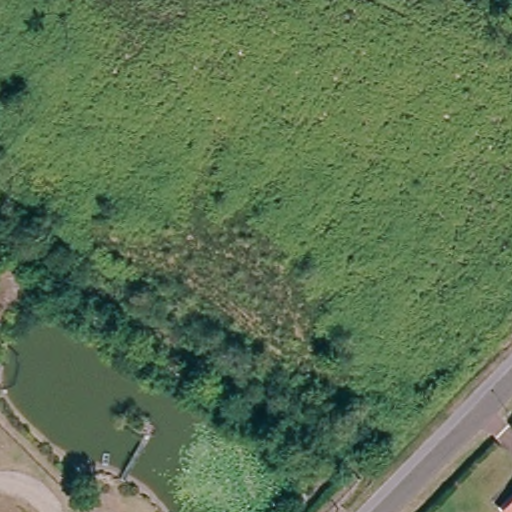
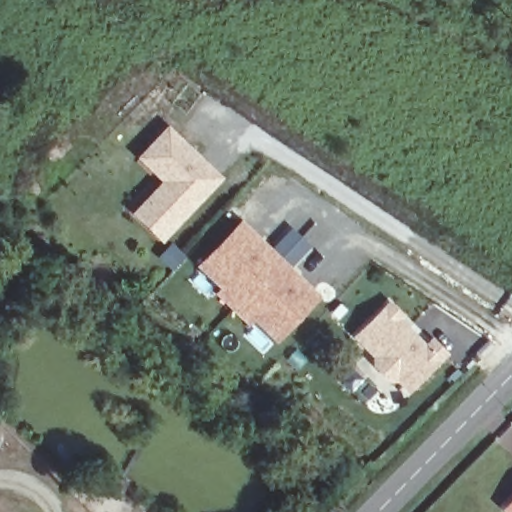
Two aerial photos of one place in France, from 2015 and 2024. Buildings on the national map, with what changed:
new [(222,179),(162,243),(129,214),(161,183),(136,158),(167,124),(222,179)]
new [(273,248),(291,230),(310,246),(291,267),(319,296),(277,344),(251,322),(246,327),(212,296),(220,288),(196,265),(242,220),(273,248)]
new [(401,317),(397,321),(419,343),(414,347),(420,353),(432,343),(444,355),(407,390),(395,377),(388,382),(368,364),(375,359),(355,340),(390,307),(401,317)]
unchanged [(506,512),(502,507),(512,497),(512,512),(506,512)]

